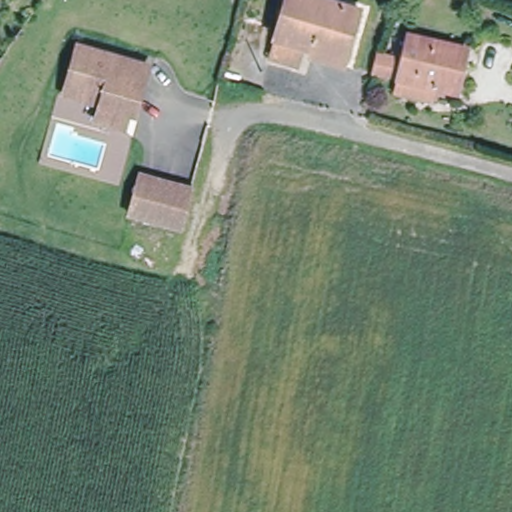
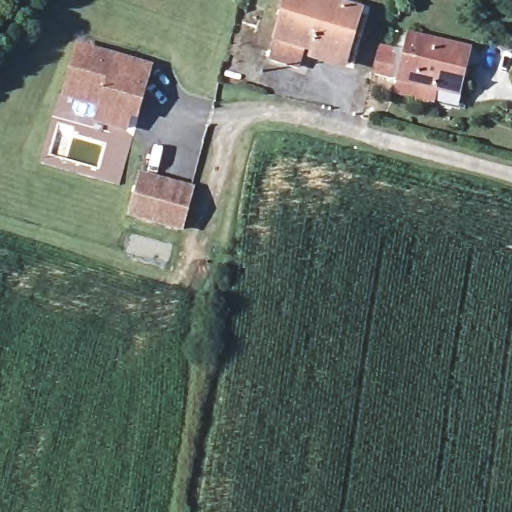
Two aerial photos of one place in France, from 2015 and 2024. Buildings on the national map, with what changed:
unchanged [(287,0),(318,0),(355,8),(345,56),(280,41),(287,0)]
unchanged [(344,76),(302,65),(297,74),(267,65),(273,40),(347,65),(344,76)]
unchanged [(462,52),(460,69),(450,66),(446,94),(400,84),(410,40),(462,52)]
unchanged [(151,69),(142,92),(135,89),(121,125),(98,116),(102,101),(66,87),(83,44),(151,69)]
unchanged [(393,101),(391,114),(376,111),(377,99),(393,101)]
unchanged [(194,189),(182,234),(125,220),(137,176),(194,189)]

